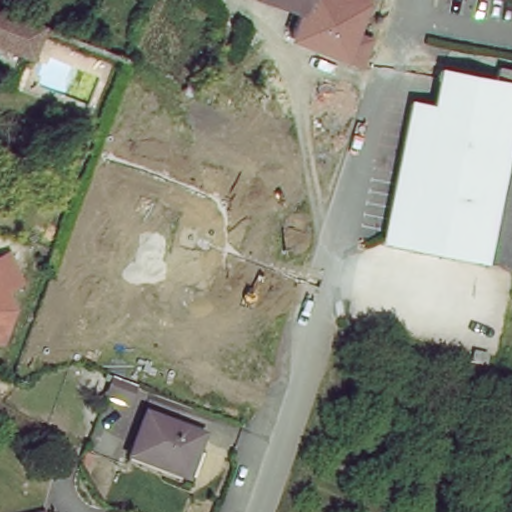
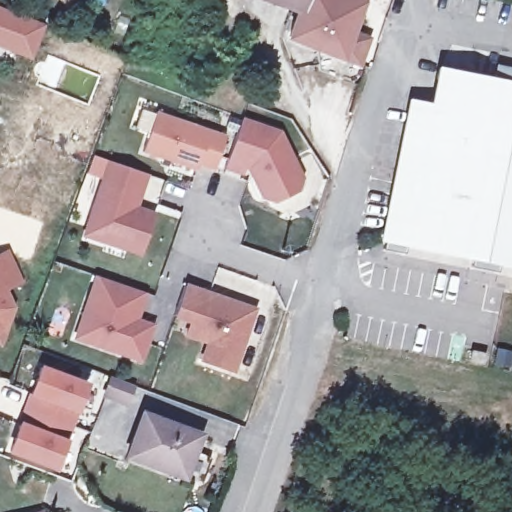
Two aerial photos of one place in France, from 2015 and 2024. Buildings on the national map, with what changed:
unchanged [(351,37),(368,44),(358,70),(291,44),(298,20),(245,0),(365,0),(351,37)]
unchanged [(41,25),(22,69),(0,60),(0,9),(41,25)]
unchanged [(407,110),(424,113),(434,74),(487,85),(490,72),(512,76),(512,272),(377,245),(407,110)]
new [(198,167),(196,173),(143,153),(158,112),(226,136),(214,173),(198,167)]
new [(245,169),(242,177),(225,171),(243,118),(282,132),(304,179),(300,192),(270,205),(261,200),(249,170),(245,169)]
new [(141,257),(82,237),(107,161),(149,175),(138,207),(156,212),(141,257)]
unchanged [(8,250),(23,287),(10,293),(18,308),(4,347),(0,345),(0,252),(8,250)]
new [(143,364),(72,340),(94,276),(147,294),(140,320),(155,325),(143,364)]
new [(207,345),(184,337),(188,324),(173,318),(186,284),(259,309),(236,375),(201,363),(207,345)]
unchanged [(464,365),(467,354),(481,358),(479,369),(464,365)]
new [(39,364),(87,382),(70,433),(52,472),(6,455),(39,364)]
unchanged [(136,388),(128,411),(102,401),(112,378),(136,388)]
unchanged [(124,457),(140,413),(196,433),(180,476),(124,457)]

